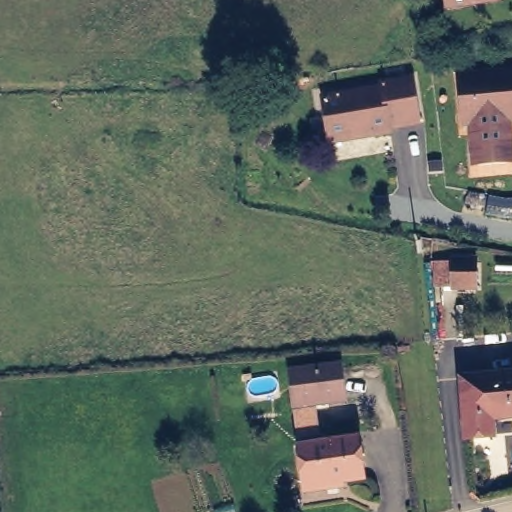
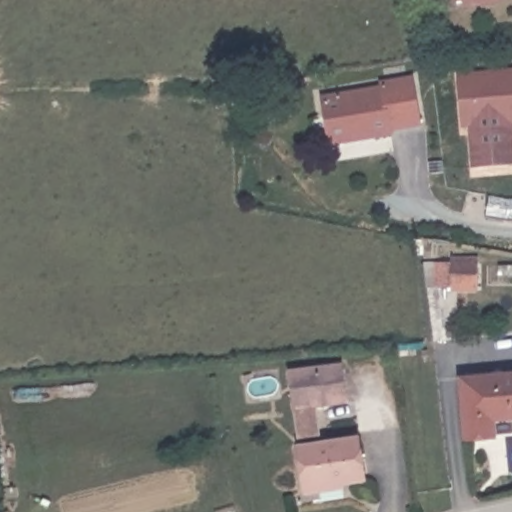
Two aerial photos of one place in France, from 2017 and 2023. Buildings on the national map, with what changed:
unchanged [(447,3),(446,0),(477,0),(447,3)]
unchanged [(512,154),(512,159),(474,162),(470,117),(463,117),(461,100),(459,73),(474,72),(512,69),(512,113),(508,113),(512,154)]
unchanged [(376,90),(376,86),(407,81),(414,124),(384,129),(384,134),(351,139),(350,135),(324,139),(317,100),(376,90)]
unchanged [(478,254),(477,290),(455,288),(439,287),(447,341),(432,341),(428,287),(424,285),(424,259),(450,259),(450,253),(478,254)]
unchanged [(285,363),(334,357),(339,392),(289,398),(285,363)]
unchanged [(512,415),(496,416),(497,431),(470,432),(467,373),(512,371),(512,415)]
unchanged [(289,429),(286,404),(310,400),(314,426),(289,429)]
unchanged [(299,487),(299,479),(293,438),(353,429),(359,470),(344,473),(344,479),(299,487)]

